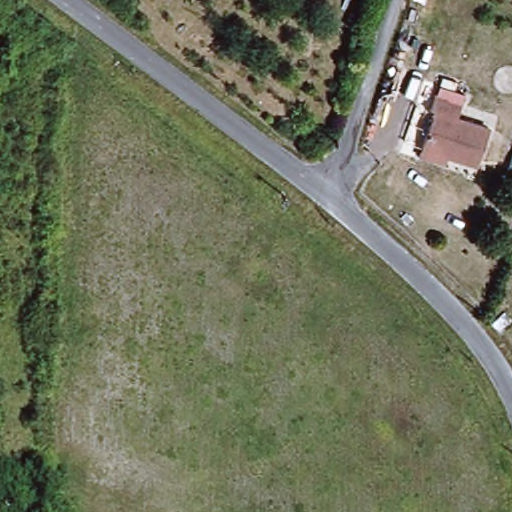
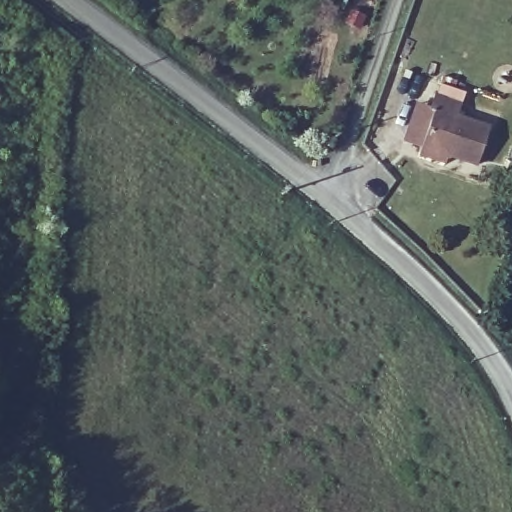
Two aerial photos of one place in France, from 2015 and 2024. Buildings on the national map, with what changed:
unchanged [(421,143),(434,106),(429,105),(434,91),(461,101),(456,115),(491,127),(477,165),(441,151),(436,162),(416,155),(421,143)]

